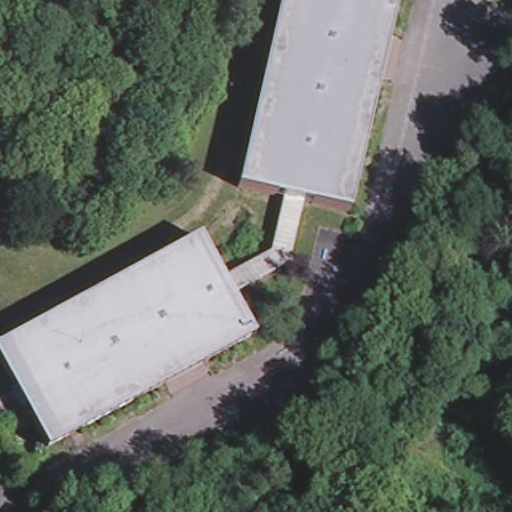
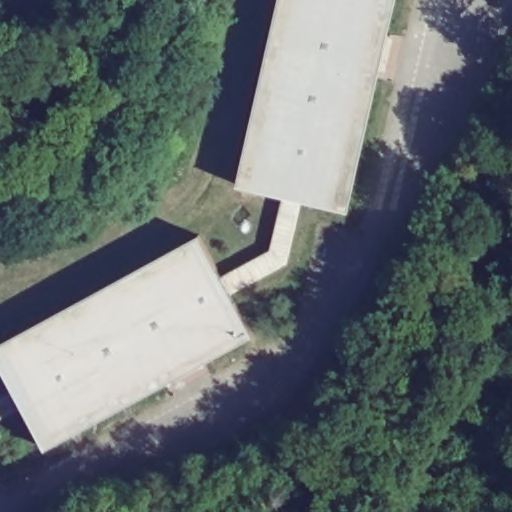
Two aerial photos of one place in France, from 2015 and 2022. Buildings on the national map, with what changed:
unchanged [(393,0),(346,211),(239,187),(281,0),(393,0)]
unchanged [(0,370),(0,346),(195,238),(248,334),(43,447),(0,370)]

